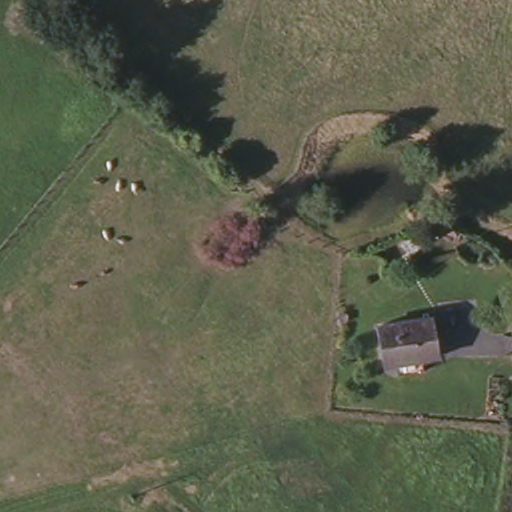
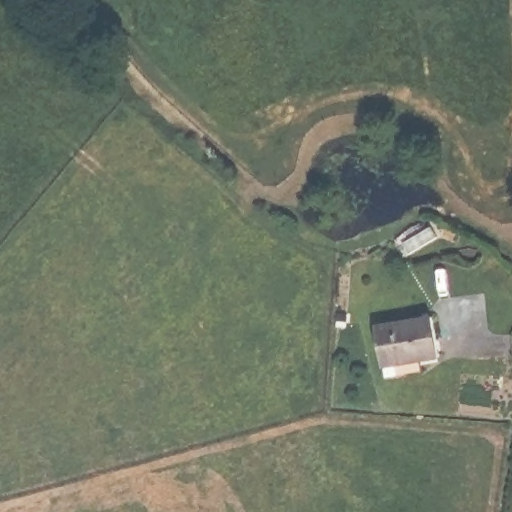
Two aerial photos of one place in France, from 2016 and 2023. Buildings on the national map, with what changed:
unchanged [(439,354),(384,365),(376,327),(432,318),(439,354)]

